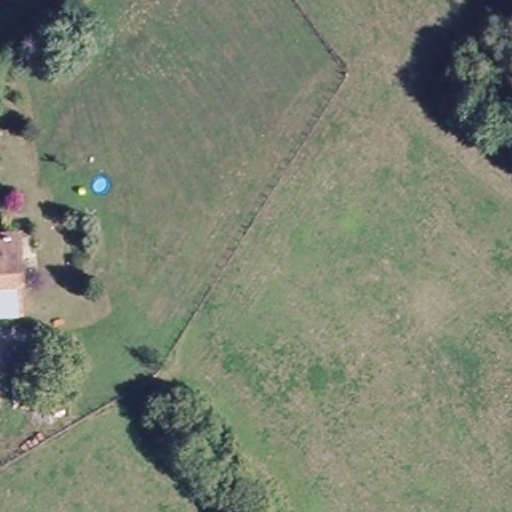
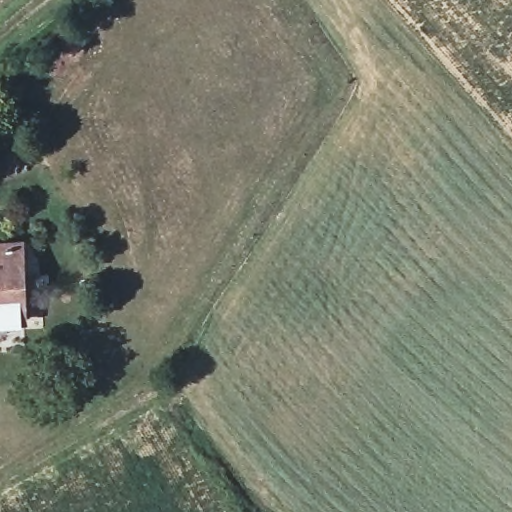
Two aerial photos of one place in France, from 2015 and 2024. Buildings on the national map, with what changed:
unchanged [(0,317),(0,243),(25,241),(26,318),(0,317)]

